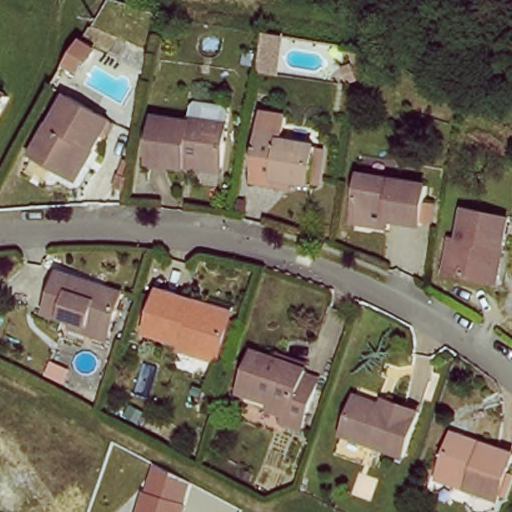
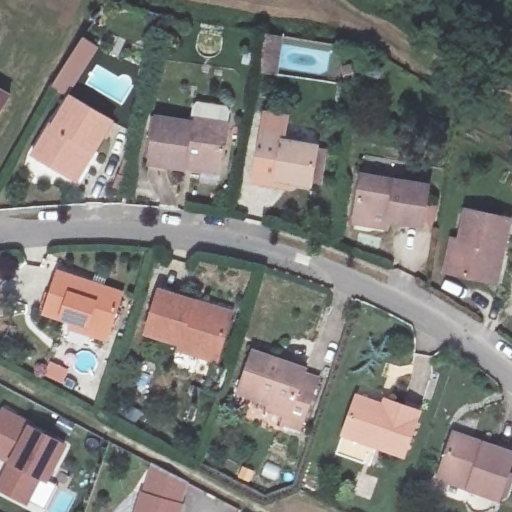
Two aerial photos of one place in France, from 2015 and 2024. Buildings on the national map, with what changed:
unchanged [(111,117),(98,145),(93,141),(74,179),(29,154),(48,116),(60,122),(73,95),(111,117)]
unchanged [(193,115),(193,125),(230,131),(226,162),(186,157),(185,165),(149,159),(158,110),(193,115)]
unchanged [(312,181),(281,177),(281,185),(261,182),(265,150),(284,153),(286,140),(317,145),(312,181)]
unchanged [(426,183),(421,226),(355,217),(361,173),(426,183)]
unchanged [(508,211),(499,275),(451,269),(454,235),(462,235),(465,205),(508,211)]
unchanged [(123,297),(109,341),(48,317),(63,275),(123,297)]
unchanged [(194,301),(191,310),(231,326),(216,368),(178,353),(180,343),(148,331),(161,289),(194,301)]
unchanged [(307,374),(306,380),(319,385),(310,417),(294,411),(292,419),(269,411),(272,403),(243,392),(255,354),(307,374)]
unchanged [(404,457),(346,438),(357,400),(383,410),(387,398),(419,408),(404,457)]
new [(26,428),(60,445),(43,480),(34,475),(21,501),(0,489),(0,477),(8,460),(0,456),(0,410),(0,409),(28,425),(26,428)]
unchanged [(486,441),(483,449),(512,458),(512,465),(502,497),(440,476),(454,431),(486,441)]
unchanged [(191,483),(183,512),(136,512),(148,463),(191,483)]

